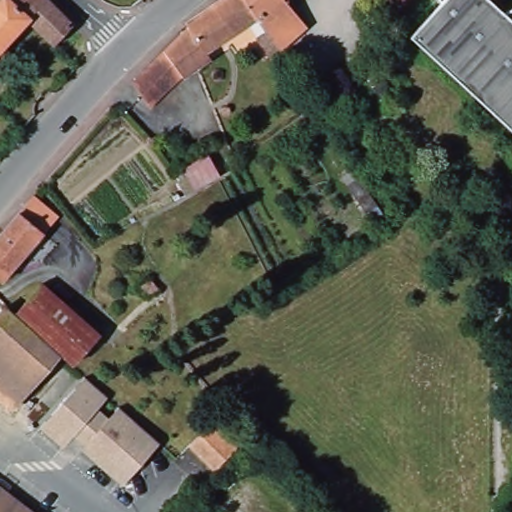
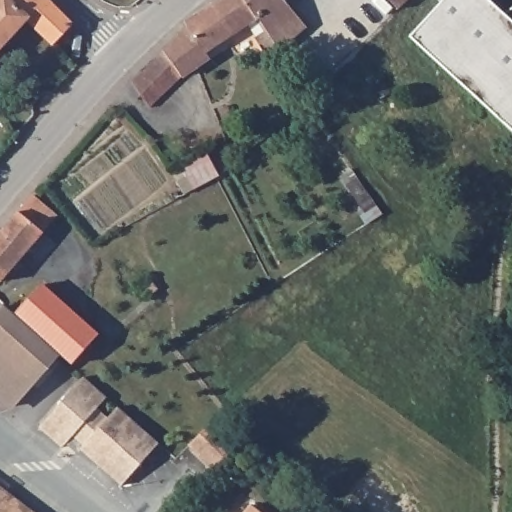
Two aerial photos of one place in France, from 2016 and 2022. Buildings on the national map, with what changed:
unchanged [(0,50),(0,0),(50,0),(73,24),(73,25),(56,42),(54,45),(28,20),(0,50)]
unchanged [(163,50),(188,25),(186,20),(217,0),(245,0),(257,18),(256,19),(206,52),(210,58),(183,76),(150,107),(131,81),(163,50)]
unchanged [(259,17),(257,18),(245,0),(285,0),(307,25),(279,49),(267,56),(255,37),(266,30),(259,17)]
unchanged [(398,9),(390,0),(408,0),(398,9)]
unchanged [(440,2),(438,0),(491,0),(505,12),(512,7),(512,131),(485,106),(409,36),(416,29),(440,2)]
unchanged [(210,155),(220,175),(218,176),(193,190),(182,169),(210,155)]
unchanged [(359,176),(377,204),(365,212),(347,185),(359,176)]
unchanged [(59,215),(1,283),(0,282),(0,232),(34,193),(59,215)]
unchanged [(33,271),(91,323),(62,353),(51,343),(5,302),(33,271)]
unchanged [(147,275),(159,288),(148,298),(136,284),(147,275)]
unchanged [(0,392),(0,308),(5,302),(51,343),(62,353),(15,405),(0,392)]
unchanged [(124,486),(84,451),(80,455),(66,445),(64,446),(40,428),(83,378),(108,398),(98,409),(109,418),(119,408),(161,444),(124,486)]
unchanged [(212,422),(236,446),(214,469),(189,445),(212,422)]
unchanged [(0,512),(0,482),(38,512),(0,512)]

